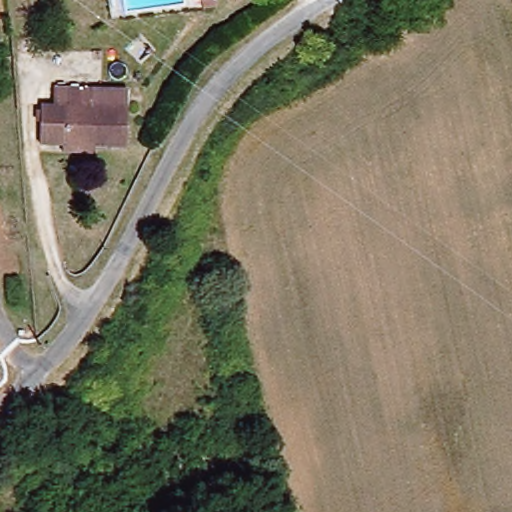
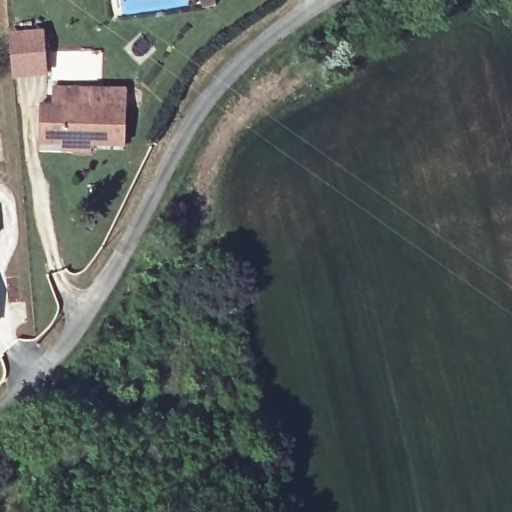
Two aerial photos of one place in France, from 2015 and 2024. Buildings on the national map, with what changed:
unchanged [(199,10),(197,0),(216,0),(218,6),(199,10)]
new [(45,28),(49,76),(11,78),(9,30),(45,28)]
unchanged [(71,155),(71,141),(49,141),(51,103),(65,102),(65,91),(99,93),(99,106),(133,107),(131,147),(99,148),(99,156),(71,155)]

